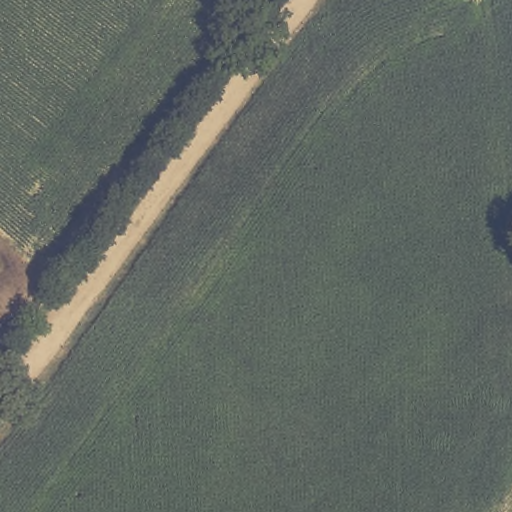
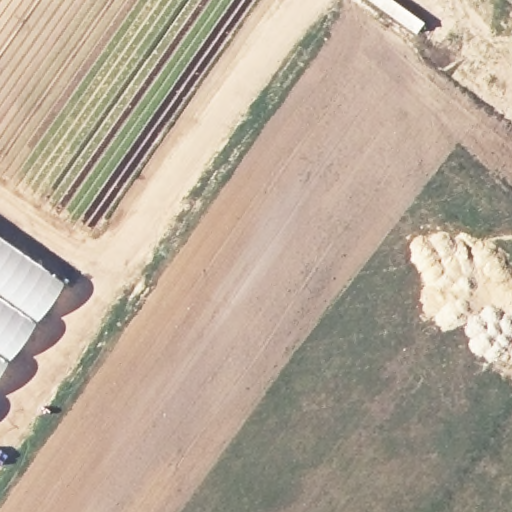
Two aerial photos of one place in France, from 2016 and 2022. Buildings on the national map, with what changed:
new [(0,372),(0,237),(63,282),(0,372)]

